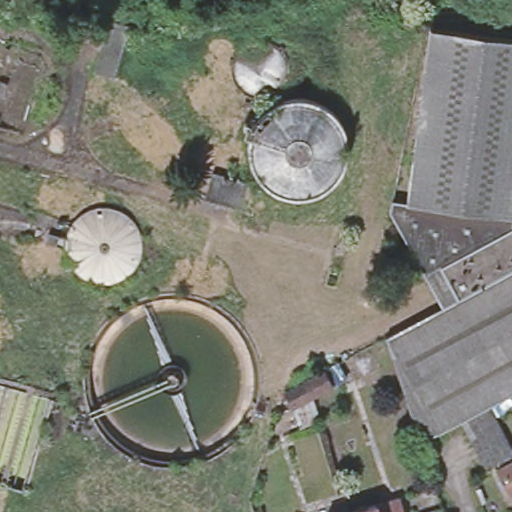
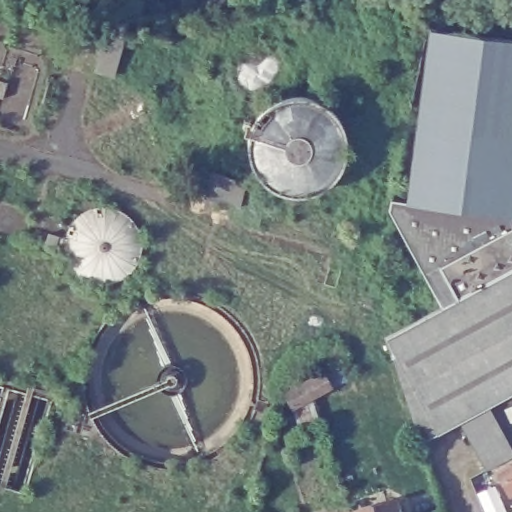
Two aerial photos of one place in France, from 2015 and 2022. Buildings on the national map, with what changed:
unchanged [(125,28),(110,79),(92,73),(107,23),(125,28)]
unchanged [(512,200),(510,218),(410,204),(432,32),(512,42),(512,200)]
unchanged [(240,181),(235,204),(202,196),(208,173),(240,181)]
unchanged [(390,214),(392,202),(410,204),(510,218),(510,229),(424,277),(390,214)]
unchanged [(94,217),(100,215),(104,215),(110,215),(115,216),(120,217),(124,220),(132,226),(135,230),(139,235),(140,240),(142,246),(143,252),(142,259),(140,265),(137,272),(134,277),(127,282),(123,285),(117,287),(112,288),(106,289),(100,288),(95,287),(90,285),(82,280),(77,276),(75,272),(72,265),(69,254),(32,243),(38,222),(74,232),(87,219),(94,217)]
unchanged [(510,229),(512,228),(512,271),(441,309),(424,277),(510,229)]
unchanged [(460,424),(419,446),(385,340),(441,309),(512,271),(512,396),(487,409),(460,424)]
unchanged [(320,375),(328,389),(292,409),(284,395),(320,375)]
unchanged [(512,458),(486,471),(460,424),(487,409),(512,455),(512,458)]
unchanged [(497,473),(512,465),(512,496),(510,497),(497,473)]
unchanged [(399,512),(375,512),(397,505),(399,512)]
unchanged [(441,512),(439,512),(440,511),(441,512)]

